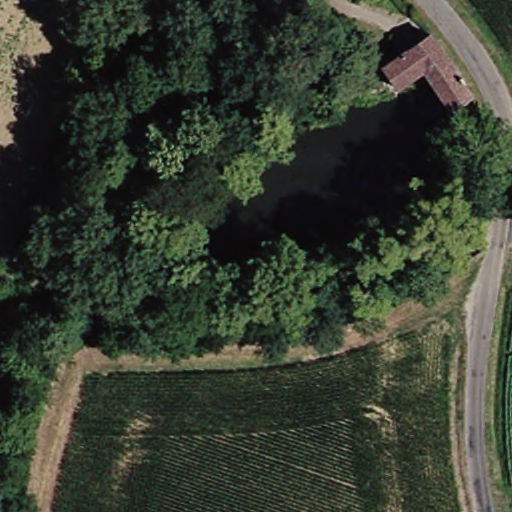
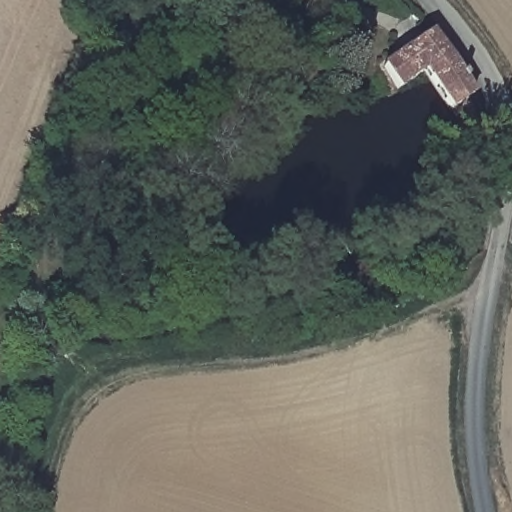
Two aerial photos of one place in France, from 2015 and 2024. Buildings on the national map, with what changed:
unchanged [(436,85),(427,73),(400,91),(385,67),(435,35),(437,34),(481,96),(456,112),(436,85)]

